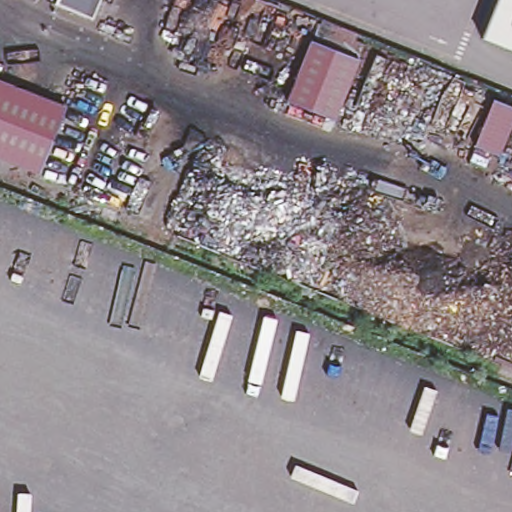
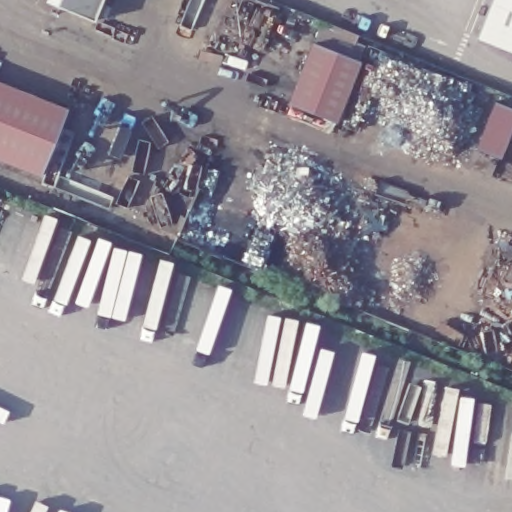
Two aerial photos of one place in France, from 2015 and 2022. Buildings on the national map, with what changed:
unchanged [(95,21),(57,7),(60,0),(103,0),(95,21)]
unchanged [(496,0),(512,0),(512,50),(481,38),(496,0)]
unchanged [(312,37),(358,56),(335,117),(288,99),(312,37)]
unchanged [(42,170),(0,152),(0,77),(68,105),(42,170)]
unchanged [(488,100),(511,110),(492,157),(469,147),(488,100)]

